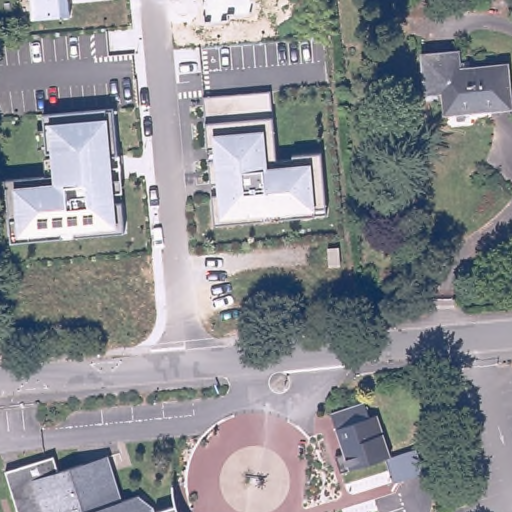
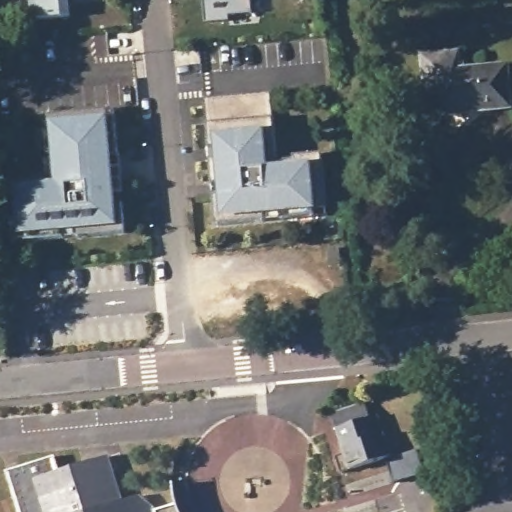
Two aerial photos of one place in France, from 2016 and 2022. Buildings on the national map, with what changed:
unchanged [(70,18),(33,21),(31,0),(69,0),(70,18)]
unchanged [(250,12),(228,13),(228,19),(205,22),(203,0),(250,0),(250,12)]
unchanged [(443,110),(441,93),(424,94),(420,56),(455,53),(457,63),(462,63),(463,70),(506,66),(509,109),(478,112),(443,115),(443,110)]
unchanged [(269,93),(272,119),(275,160),(320,155),(325,216),(214,226),(205,124),(203,99),(269,93)]
unchanged [(123,234),(11,242),(7,180),(47,176),(42,113),(113,108),(123,234)]
unchanged [(367,405),(372,420),(381,418),(393,458),(343,474),(337,456),(346,453),(336,416),(367,405)]
unchanged [(141,498),(157,507),(158,512),(18,512),(6,474),(54,458),(59,472),(112,459),(120,501),(141,498)]
unchanged [(178,512),(160,512),(175,506),(178,512)]

